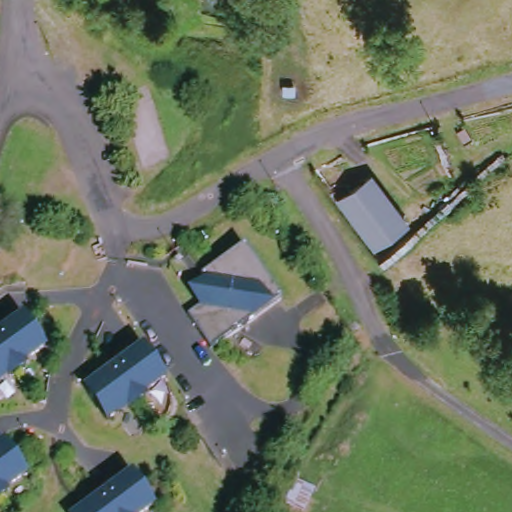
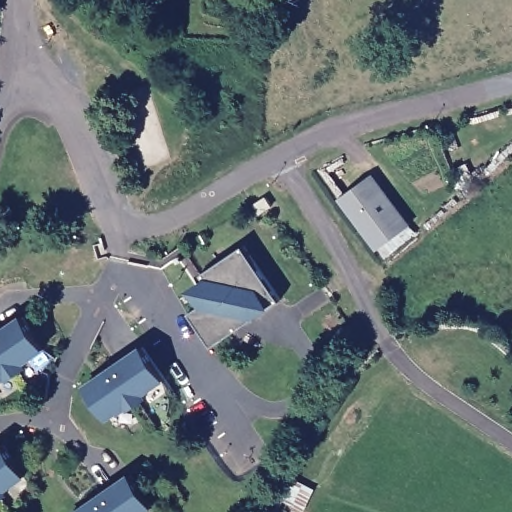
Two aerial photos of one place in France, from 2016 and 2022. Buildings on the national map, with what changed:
unchanged [(376,177),(411,226),(379,249),(344,201),(376,177)]
unchanged [(251,197),(260,191),(268,187),(273,195),(266,200),(257,206),(251,197)]
unchanged [(194,306),(190,299),(199,293),(195,288),(200,284),(193,274),(236,241),(276,294),(207,347),(183,313),(194,306)]
unchanged [(16,315),(36,347),(0,374),(0,327),(16,315)]
unchanged [(80,385),(138,342),(160,372),(102,415),(80,385)]
unchanged [(19,471),(0,485),(0,447),(19,471)]
unchanged [(122,475),(143,506),(135,512),(72,512),(122,475)]

